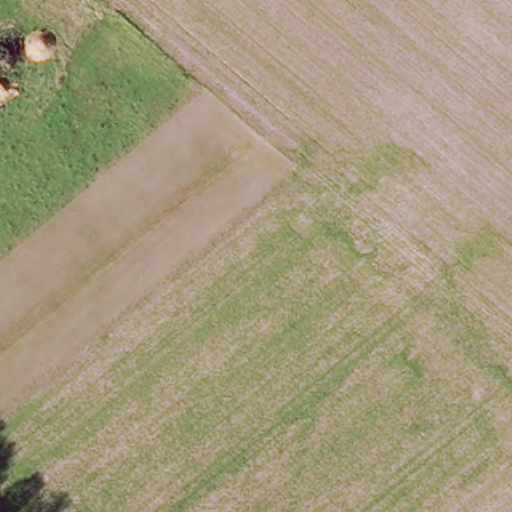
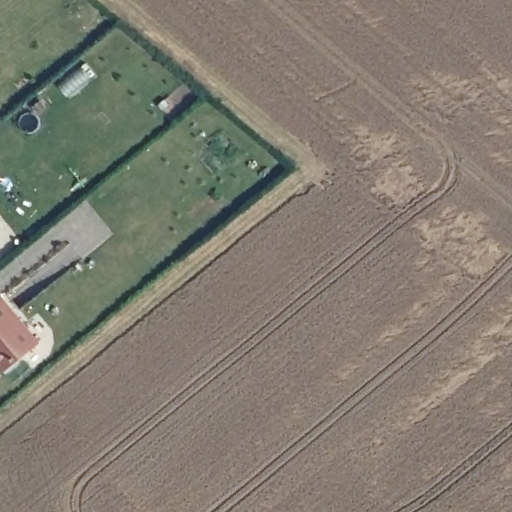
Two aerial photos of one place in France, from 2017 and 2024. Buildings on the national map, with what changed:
new [(6,371),(0,364),(0,291),(1,291),(42,341),(6,371)]

